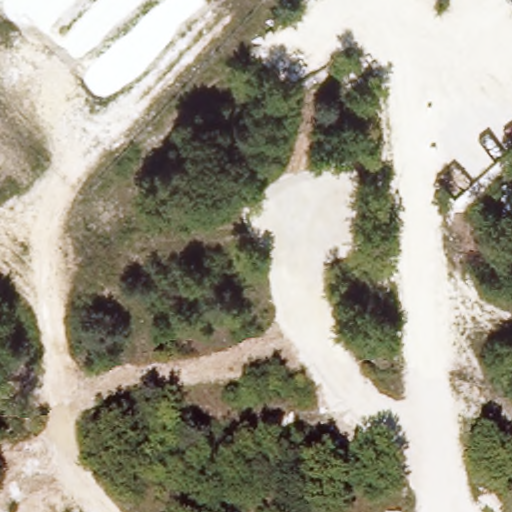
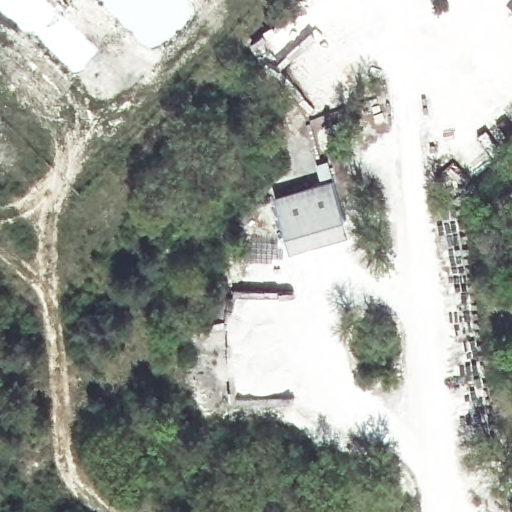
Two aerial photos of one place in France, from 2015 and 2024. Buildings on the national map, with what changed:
new [(350,236),(291,253),(275,196),(332,180),(350,236)]

